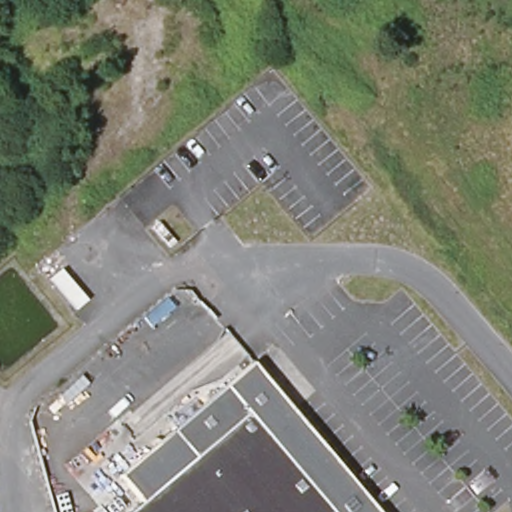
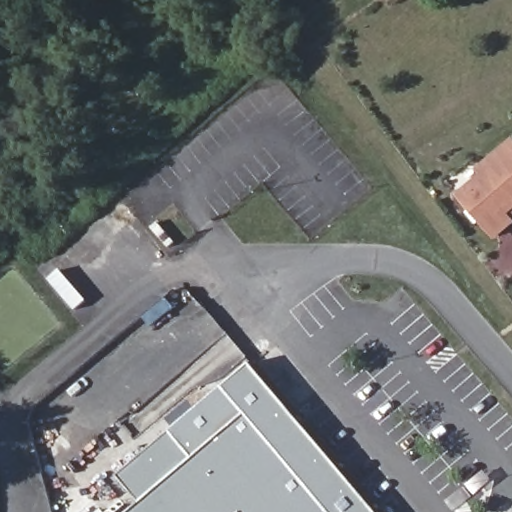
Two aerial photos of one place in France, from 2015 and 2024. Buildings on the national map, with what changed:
new [(481,174),(476,168),(512,138),(512,226),(495,240),(458,193),(481,174)]
unchanged [(240,371),(250,362),(377,512),(131,512),(107,483),(240,371)]
unchanged [(108,512),(95,512),(102,505),(108,512)]

